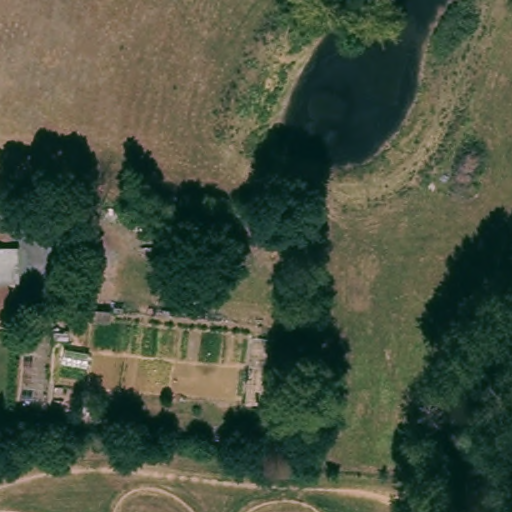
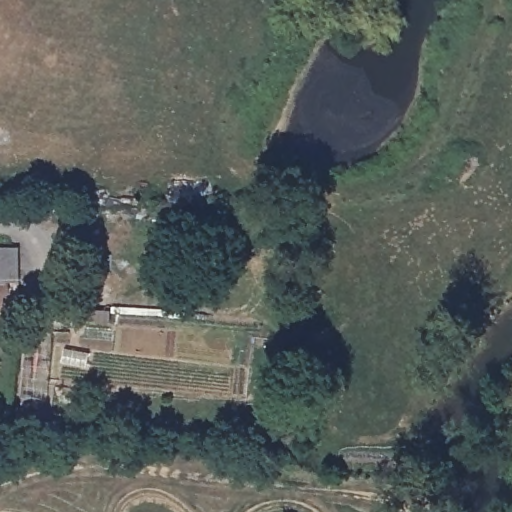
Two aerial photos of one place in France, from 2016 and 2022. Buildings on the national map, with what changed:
unchanged [(5,250),(3,278),(10,290),(9,296),(5,300),(0,304),(0,250),(5,250)]

